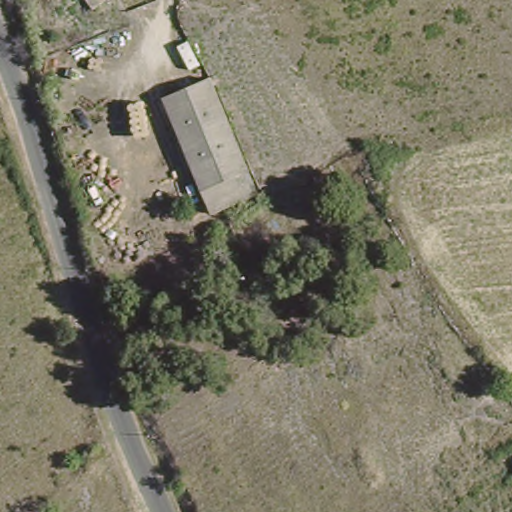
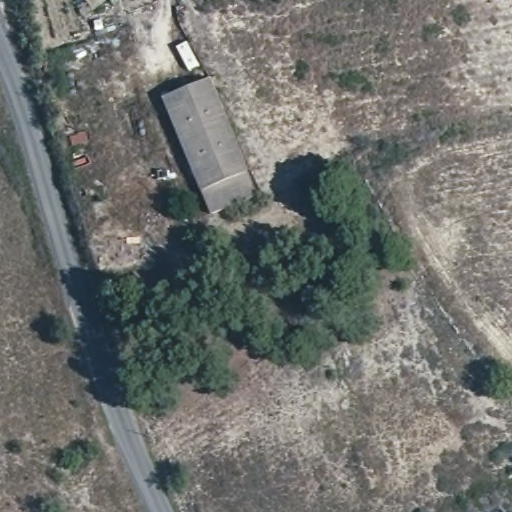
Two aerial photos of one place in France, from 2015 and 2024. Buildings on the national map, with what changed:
unchanged [(197,80),(251,191),(209,212),(154,99),(197,80)]

